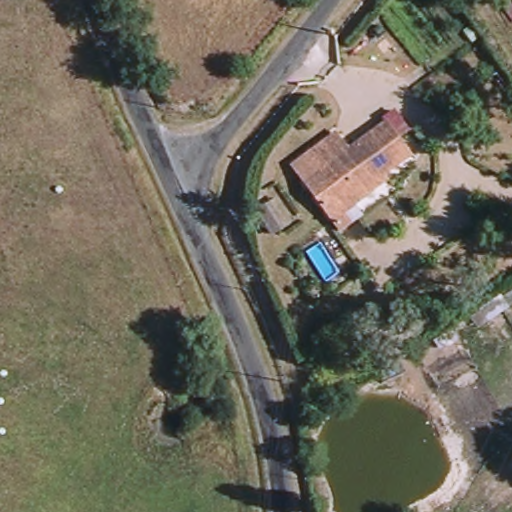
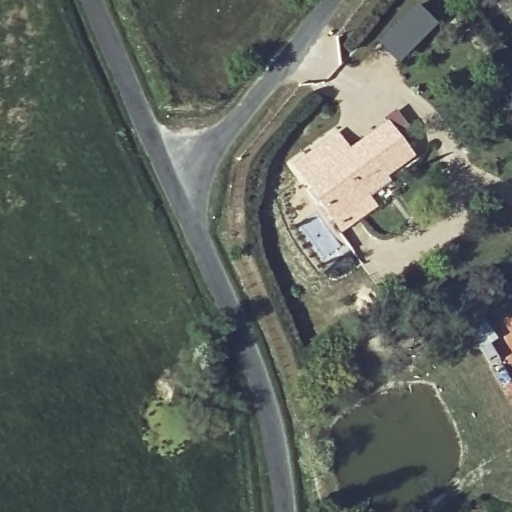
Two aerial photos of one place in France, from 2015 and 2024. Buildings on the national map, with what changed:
new [(437,23),(399,63),(377,42),(415,2),(437,23)]
unchanged [(424,155),(343,214),(308,165),(349,133),(362,150),(400,121),(424,155)]

